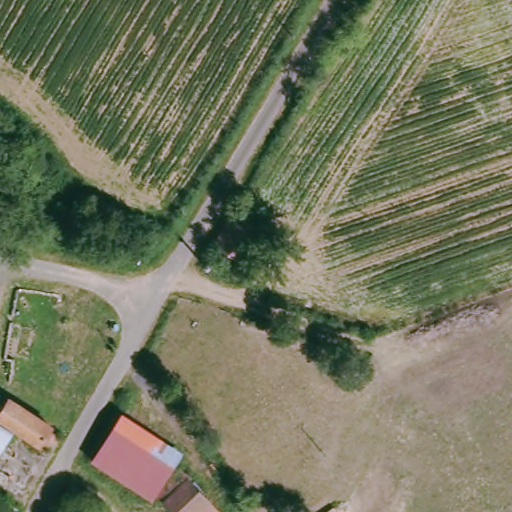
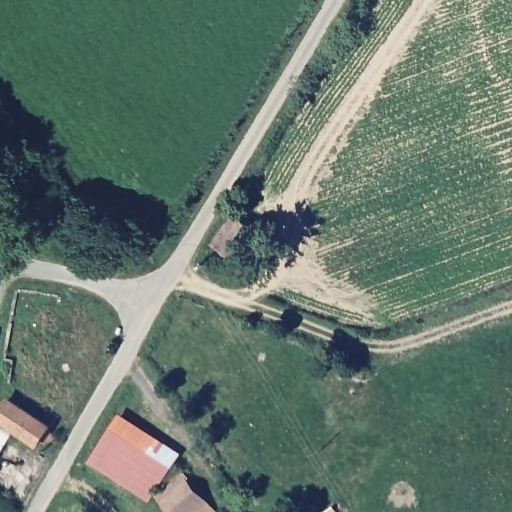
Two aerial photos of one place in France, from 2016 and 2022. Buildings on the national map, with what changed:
unchanged [(216,248),(236,217),(262,234),(243,267),(216,248)]
unchanged [(43,443),(43,446),(0,420),(11,402),(54,426),(51,432),(64,438),(57,451),(43,443)]
unchanged [(94,461),(123,418),(181,457),(153,500),(94,461)]
unchanged [(3,455),(0,453),(0,425),(15,435),(3,455)]
unchanged [(188,484),(206,503),(214,512),(173,512),(166,504),(188,484)]

